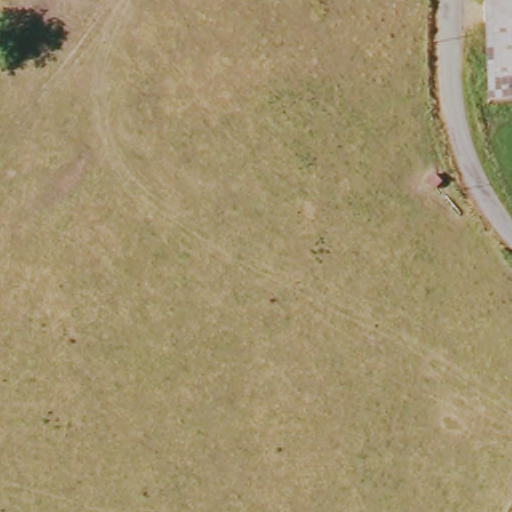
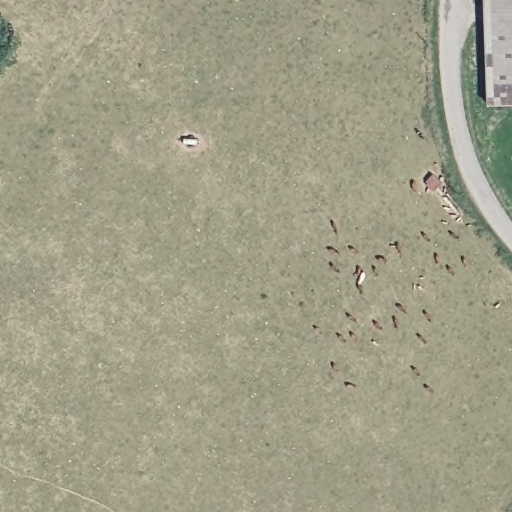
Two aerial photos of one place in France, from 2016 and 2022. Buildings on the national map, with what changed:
unchanged [(484,0),(512,0),(512,103),(488,104),(484,0)]

